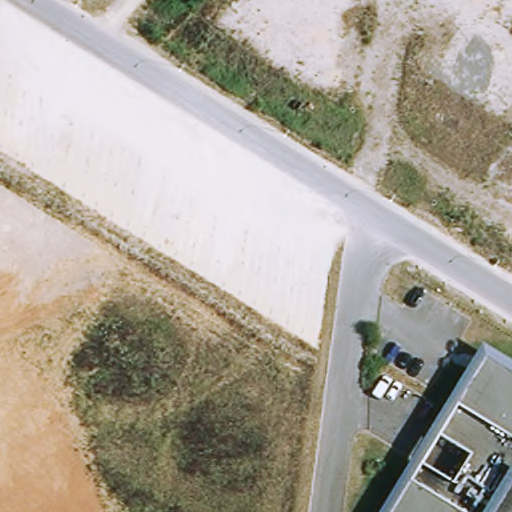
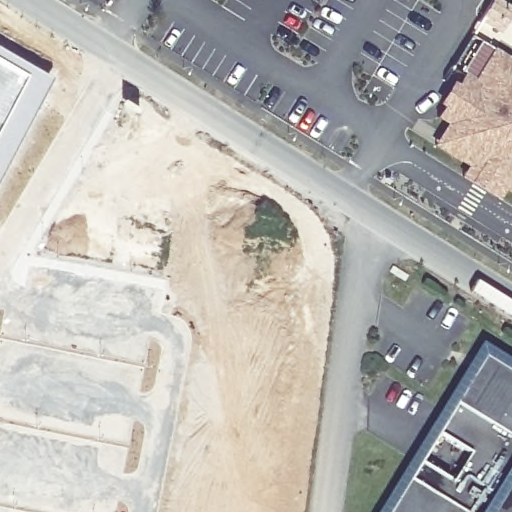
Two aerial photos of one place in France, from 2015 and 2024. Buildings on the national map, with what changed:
new [(52,84),(0,179),(0,51),(52,84)]
new [(495,96),(474,83),(494,51),(512,62),(512,76),(508,74),(495,96)]
new [(474,83),(495,96),(508,74),(512,76),(512,179),(442,136),(449,125),(438,118),(463,76),(474,83)]
new [(512,179),(512,193),(504,188),(498,199),(463,178),(470,166),(435,146),(442,136),(512,179)]
unchanged [(512,363),(512,512),(382,512),(482,345),(512,363)]

